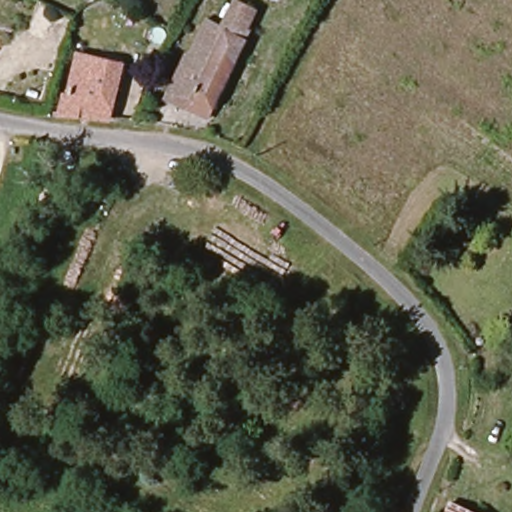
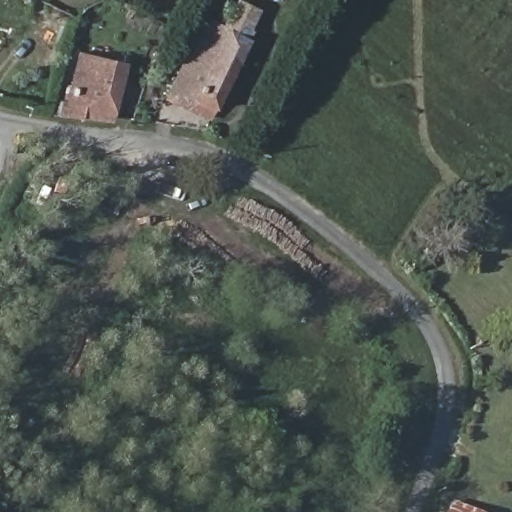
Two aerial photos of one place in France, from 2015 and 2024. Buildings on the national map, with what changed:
unchanged [(171,99),(176,89),(215,16),(229,22),(239,2),(258,10),(246,32),(253,38),(218,111),(212,122),(171,99)]
unchanged [(59,116),(78,58),(124,69),(110,122),(59,116)]
unchanged [(105,213),(92,208),(102,187),(116,193),(111,206),(105,213)]
unchanged [(478,512),(449,512),(453,503),(478,512)]

